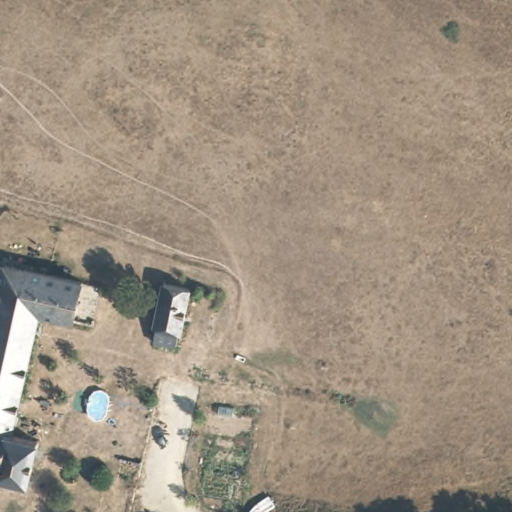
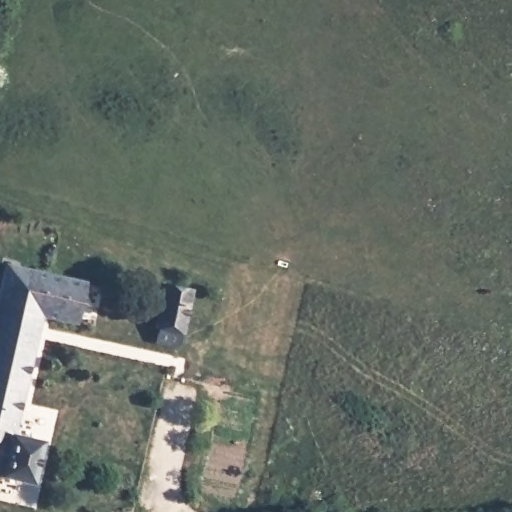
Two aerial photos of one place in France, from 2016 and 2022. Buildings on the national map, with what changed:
unchanged [(0,280),(5,260),(82,277),(73,318),(42,312),(12,429),(35,436),(25,478),(0,472),(0,280)]
unchanged [(154,340),(159,323),(155,321),(163,279),(196,285),(189,328),(182,329),(180,345),(154,340)]

